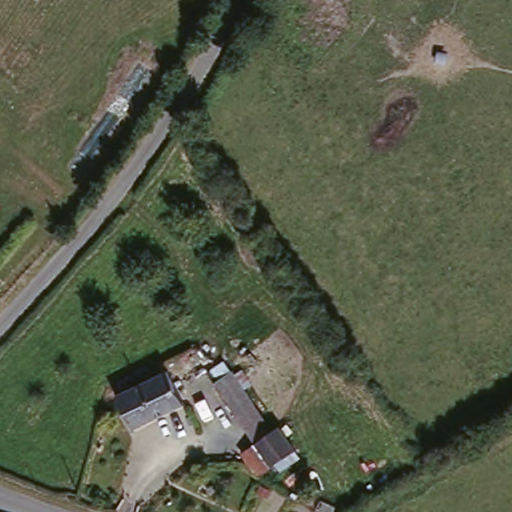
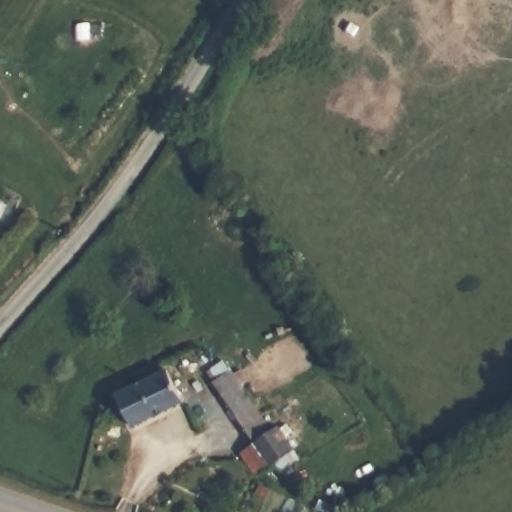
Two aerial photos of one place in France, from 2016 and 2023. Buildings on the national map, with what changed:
unchanged [(111,399),(168,369),(186,400),(127,430),(111,399)]
unchanged [(296,449),(269,468),(210,385),(236,370),(296,449)]

